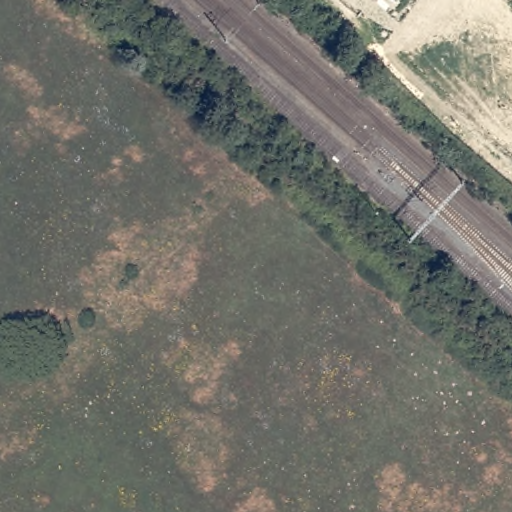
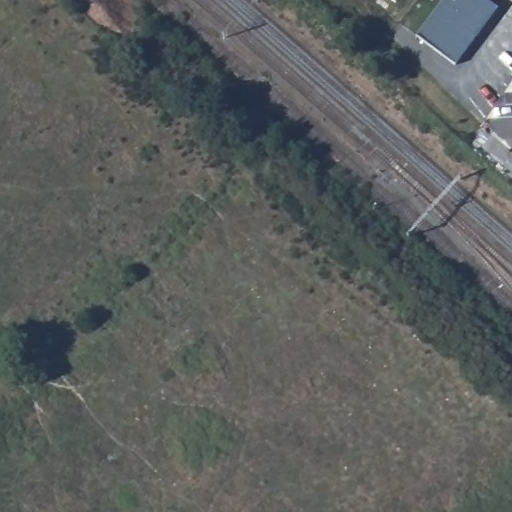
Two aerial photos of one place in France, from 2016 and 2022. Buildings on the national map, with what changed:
new [(418,37),(444,0),(484,0),(496,10),(457,65),(418,37)]

